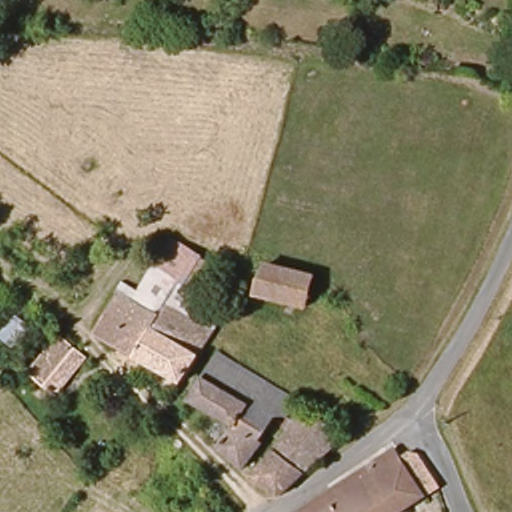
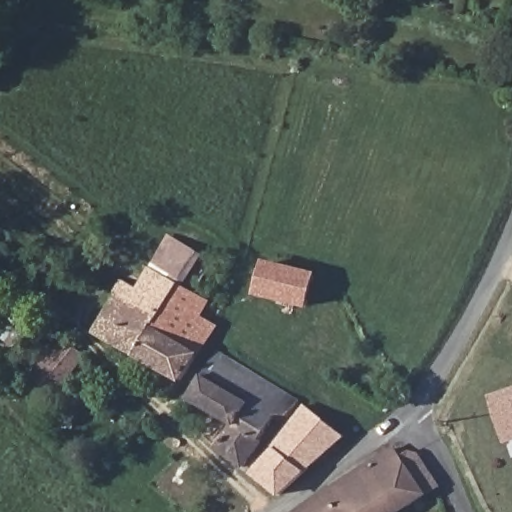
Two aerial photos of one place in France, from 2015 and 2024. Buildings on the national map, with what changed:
unchanged [(139,289),(167,242),(212,268),(200,293),(212,300),(202,317),(217,325),(206,347),(221,356),(202,385),(190,376),(182,387),(93,334),(125,282),(139,289)]
unchanged [(306,310),(257,292),(266,266),(298,275),(313,279),(306,310)]
unchanged [(301,405),(289,420),(284,417),(246,462),(220,440),(230,424),(194,398),(202,385),(221,356),(221,355),(301,405)]
unchanged [(67,373),(44,408),(34,401),(23,393),(43,359),(67,373)]
new [(487,397),(512,389),(512,444),(505,446),(487,397)]
unchanged [(308,408),(336,429),(285,491),(257,470),(308,408)]
unchanged [(401,463),(412,459),(419,462),(437,492),(405,512),(305,512),(397,457),(401,463)]

